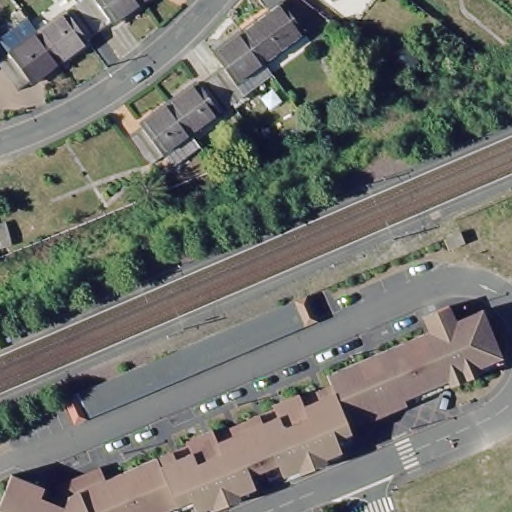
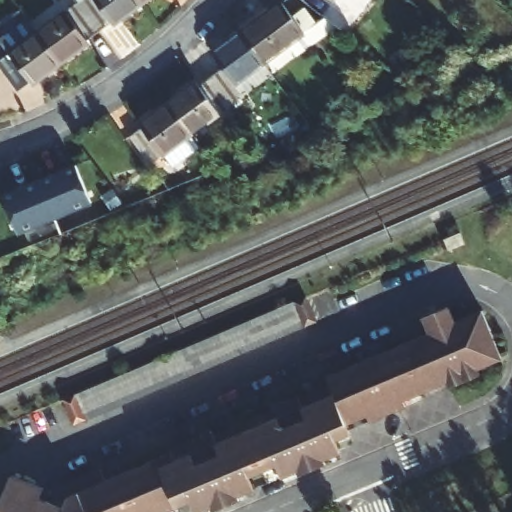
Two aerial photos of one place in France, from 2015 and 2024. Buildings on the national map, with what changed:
unchanged [(41,36),(67,15),(58,3),(62,0),(76,0),(100,31),(88,41),(89,43),(62,64),(41,36)]
unchanged [(76,0),(137,0),(140,3),(113,24),(111,22),(100,31),(76,0)]
unchanged [(137,0),(143,0),(140,3),(137,0)]
unchanged [(335,2),(332,0),(336,0),(335,2)]
unchanged [(242,36),(284,7),(307,37),(265,66),(242,36)]
unchanged [(34,85),(32,84),(20,94),(1,68),(41,36),(62,64),(34,85)]
unchanged [(238,84),(255,107),(242,116),(213,77),(225,68),(215,55),(242,36),(265,66),(238,84)]
unchanged [(230,125),(221,113),(191,134),(170,105),(199,84),(200,86),(213,77),(242,116),(230,125)]
unchanged [(150,163),(130,137),(143,127),(141,125),(170,105),(191,134),(150,163)]
new [(76,161),(93,198),(20,231),(3,195),(76,161)]
demolished [(0,209),(0,181),(11,178),(20,204),(0,209)]
unchanged [(465,250),(449,256),(445,245),(461,238),(465,250)]
unchanged [(110,383),(167,359),(165,353),(260,314),(281,306),(291,302),(303,330),(215,368),(88,422),(77,397),(110,383)]
unchanged [(37,485),(33,495),(45,500),(53,482),(95,464),(100,477),(182,442),(181,438),(207,427),(208,431),(269,406),(267,402),(293,391),(295,395),(326,382),(322,372),(425,330),(418,314),(444,303),(450,318),(477,307),(490,339),(497,355),(470,367),(472,372),(442,385),(440,380),(395,398),(398,404),(362,419),(360,413),(338,422),(342,432),(327,438),(332,450),(316,457),(317,461),(291,472),(290,468),(274,475),(268,462),(241,474),(246,487),(230,493),(231,497),(205,508),(203,504),(187,511),(182,499),(150,512),(0,512),(0,483),(5,471),(37,485)]

